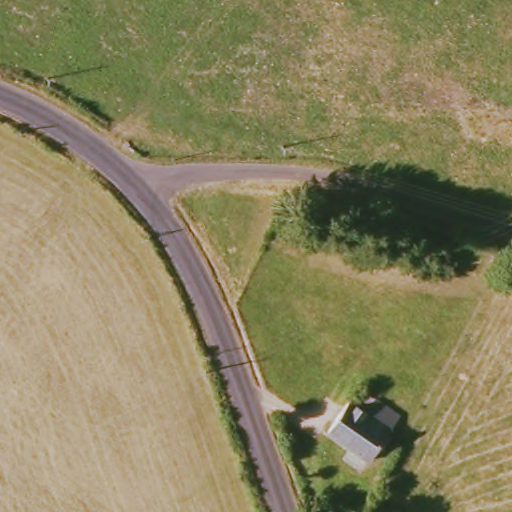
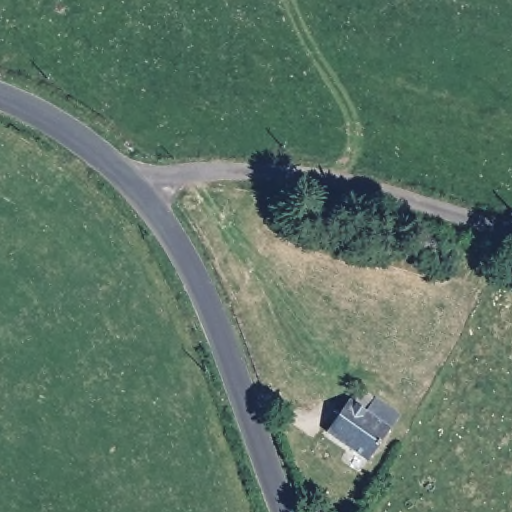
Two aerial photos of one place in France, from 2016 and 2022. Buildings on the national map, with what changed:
unchanged [(348,401),(366,413),(375,399),(400,416),(369,462),(327,433),(348,401)]

